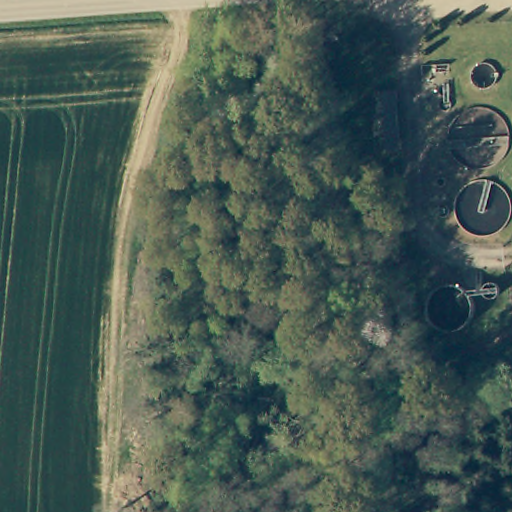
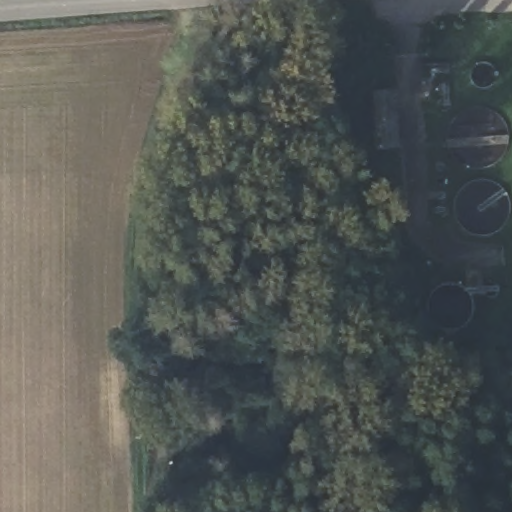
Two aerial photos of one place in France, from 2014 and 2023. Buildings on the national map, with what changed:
unchanged [(398,90),(402,146),(386,146),(381,146),(378,91),(397,90),(398,90)]

